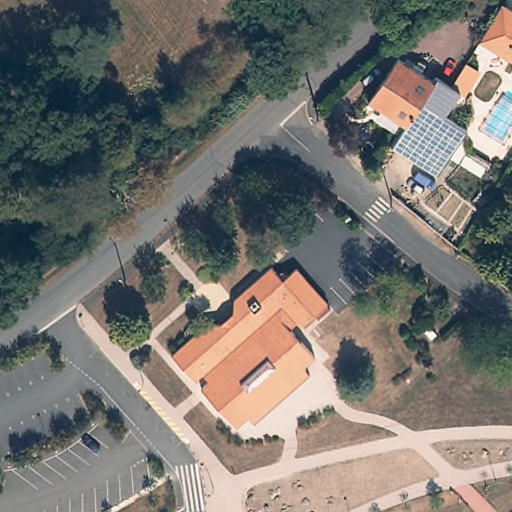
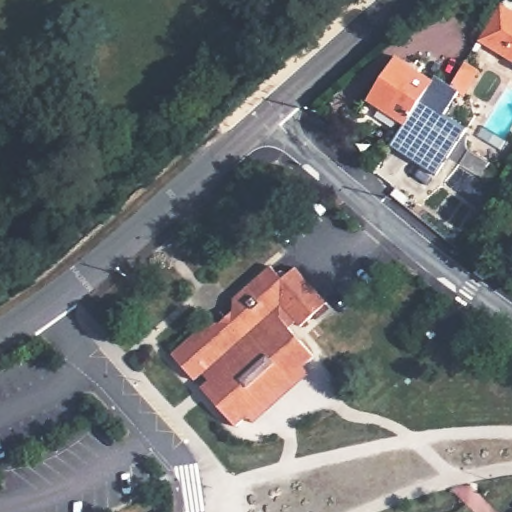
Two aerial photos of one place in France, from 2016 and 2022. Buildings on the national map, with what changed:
unchanged [(512,7),(512,59),(482,38),(505,2),(512,7)]
unchanged [(404,122),(367,97),(397,52),(412,62),(407,69),(431,83),(404,122)]
unchanged [(465,62),(478,72),(463,96),(457,92),(447,109),(469,123),(442,166),(395,136),(404,122),(431,83),(435,77),(450,86),(465,62)]
unchanged [(488,162),(479,177),(458,163),(467,149),(488,162)]
unchanged [(212,323),(220,326),(237,311),(241,295),(277,264),(287,277),(300,266),(330,300),(304,325),(300,321),(290,330),(315,359),(307,367),(313,374),(258,423),(252,417),(240,425),(206,387),(214,380),(207,373),(200,380),(177,355),(212,323)]

